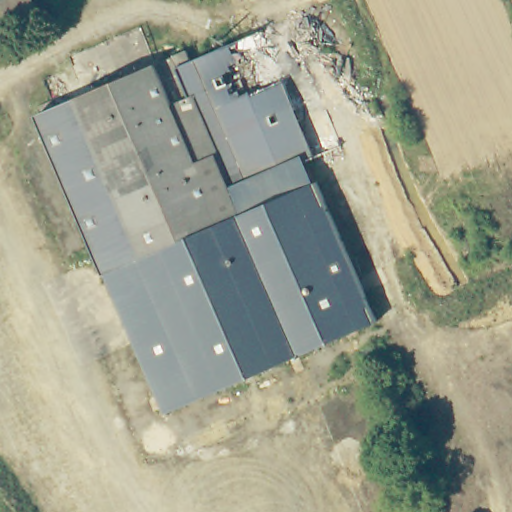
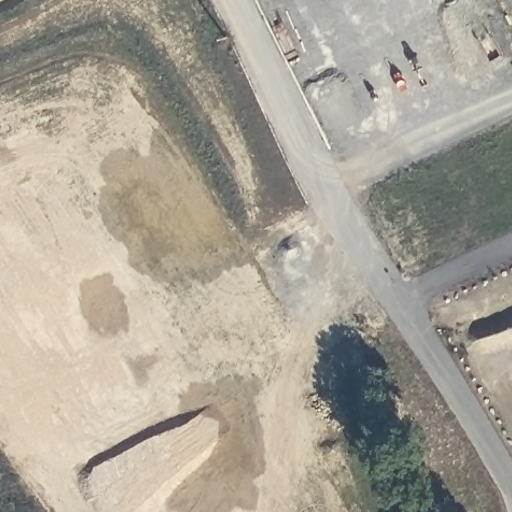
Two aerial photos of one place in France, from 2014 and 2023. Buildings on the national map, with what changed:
demolished [(169,415),(119,300),(138,292),(129,270),(109,277),(41,119),(189,55),(194,66),(292,22),(346,149),(251,190),(258,207),(321,182),(338,221),(319,229),(360,333),(169,415)]
demolished [(381,324),(360,333),(319,229),(338,221),(381,324)]

